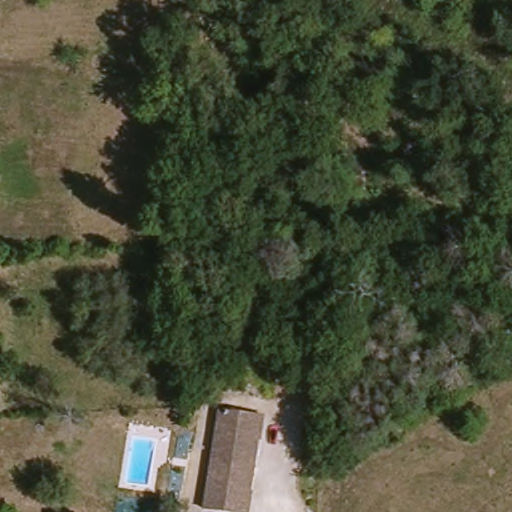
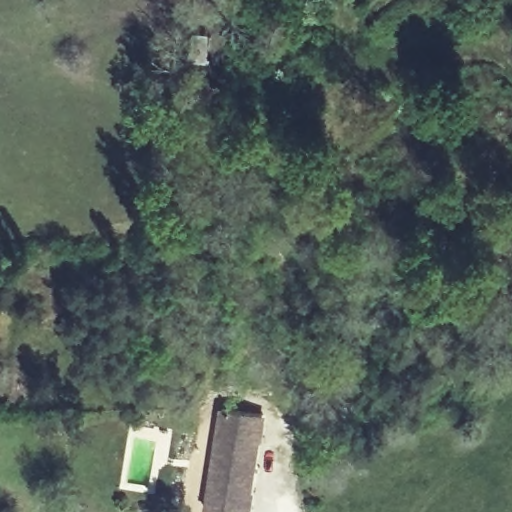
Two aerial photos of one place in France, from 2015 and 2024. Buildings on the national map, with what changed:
unchanged [(216,510),(232,408),(275,416),(259,512),(229,512),(216,510)]

